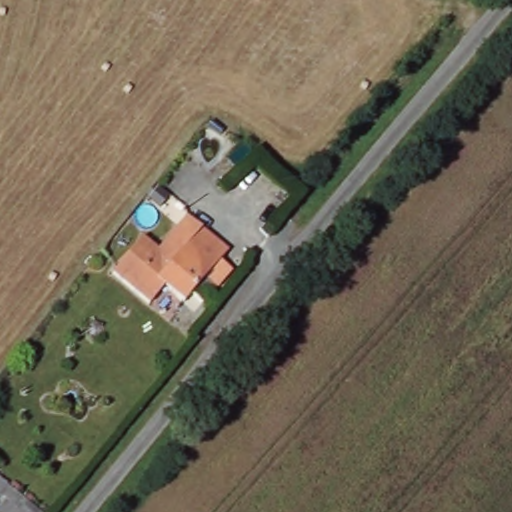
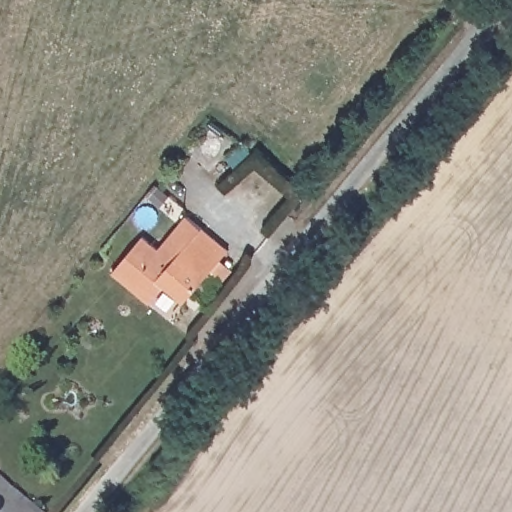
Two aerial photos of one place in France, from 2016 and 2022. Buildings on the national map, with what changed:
unchanged [(143,234),(157,246),(186,212),(228,247),(205,275),(217,285),(203,300),(192,291),(184,301),(164,284),(150,302),(112,271),(143,234)]
unchanged [(3,480),(16,491),(28,501),(41,512),(0,512),(0,478),(3,480)]

